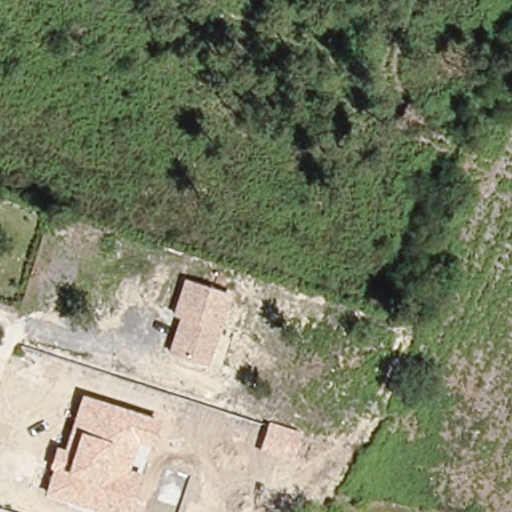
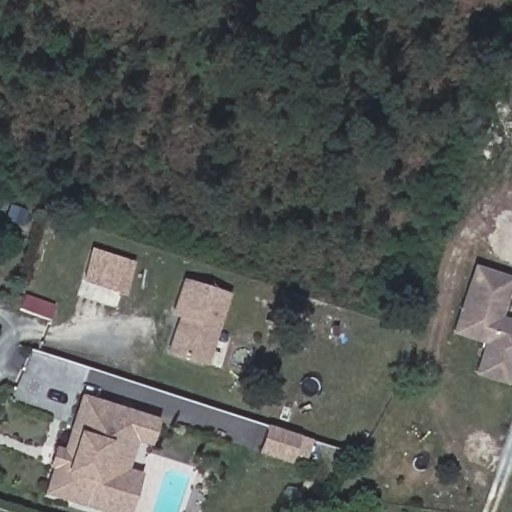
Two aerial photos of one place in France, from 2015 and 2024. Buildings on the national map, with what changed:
new [(512,319),(512,371),(508,385),(475,375),(483,344),(452,334),(473,264),(512,276),(512,283),(501,316),(512,319)]
unchanged [(179,318),(172,316),(182,280),(232,294),(209,365),(166,352),(179,318)]
unchanged [(135,441),(126,469),(140,473),(127,512),(103,512),(43,494),(51,468),(47,467),(52,446),(62,448),(79,393),(158,418),(151,446),(135,441)]
unchanged [(290,462),(258,454),(267,425),(299,435),(290,462)]

